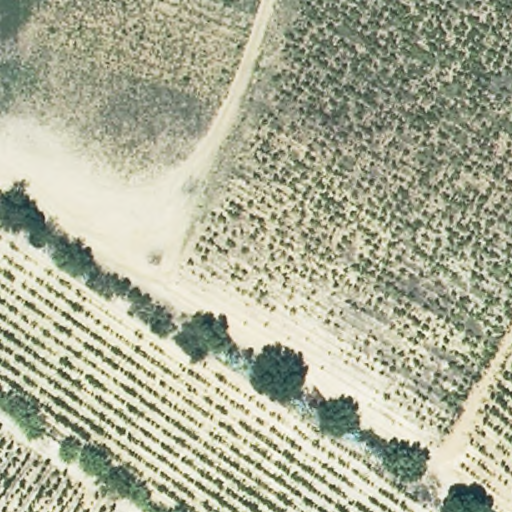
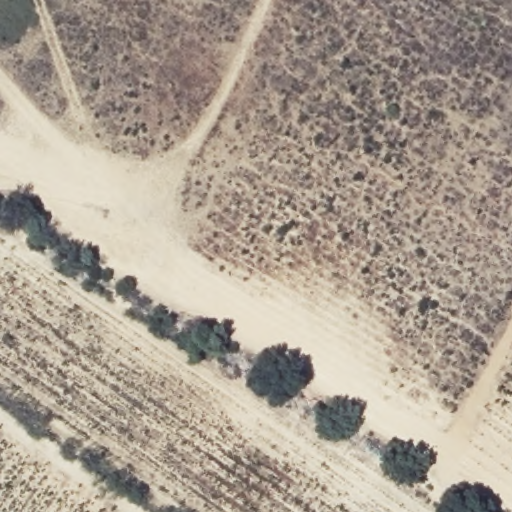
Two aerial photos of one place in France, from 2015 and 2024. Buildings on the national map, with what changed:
[]

